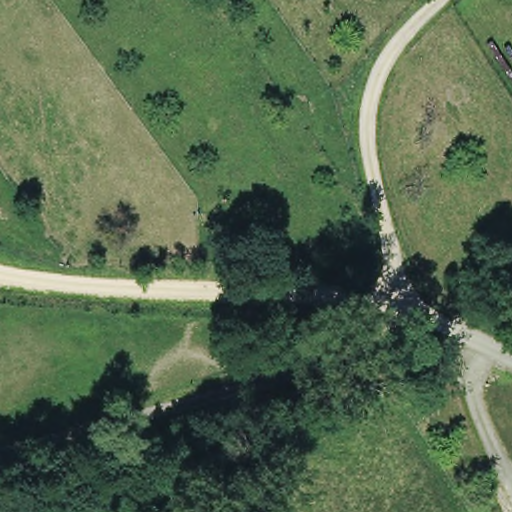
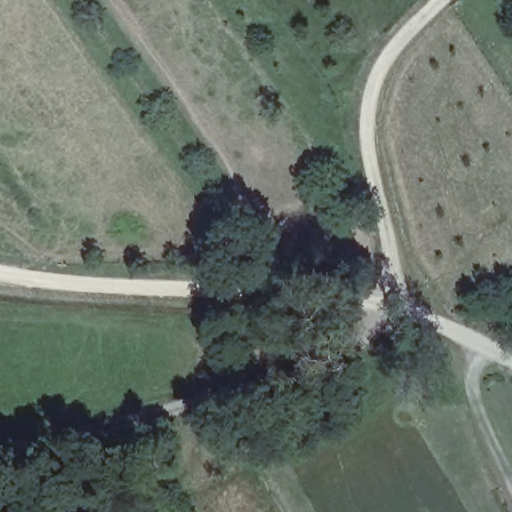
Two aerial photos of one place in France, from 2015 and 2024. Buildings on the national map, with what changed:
[]

